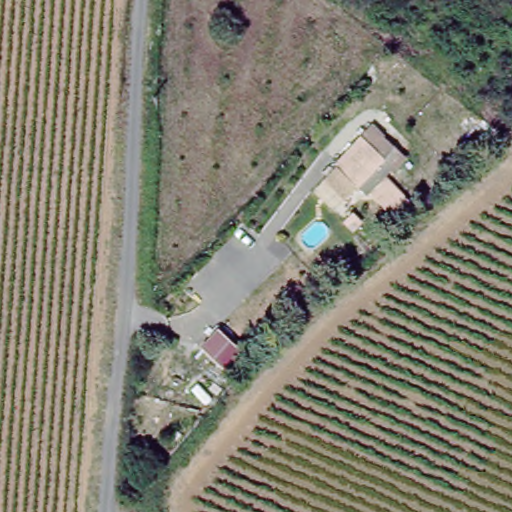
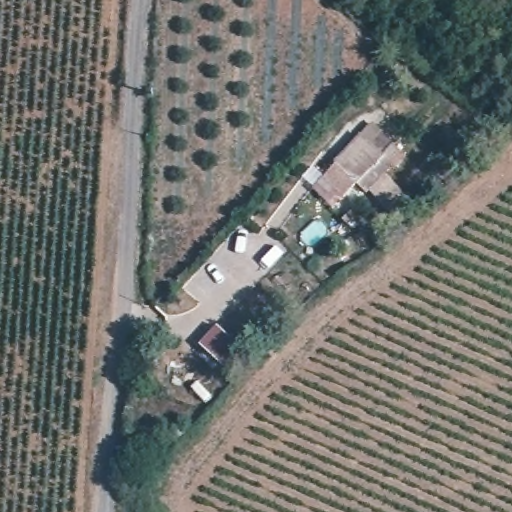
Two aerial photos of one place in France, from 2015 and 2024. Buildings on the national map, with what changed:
unchanged [(308,190),(323,172),(326,169),(336,158),(335,156),(360,128),(372,139),(383,127),(400,143),(389,155),(393,158),(367,186),(358,177),(345,192),(334,211),(308,190)]
unchanged [(223,327),(246,347),(231,370),(206,350),(223,327)]

